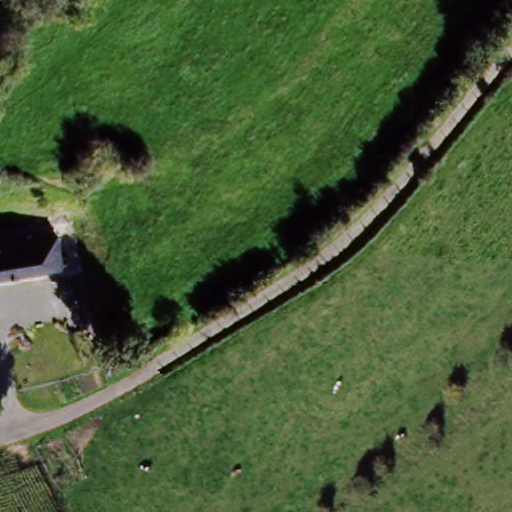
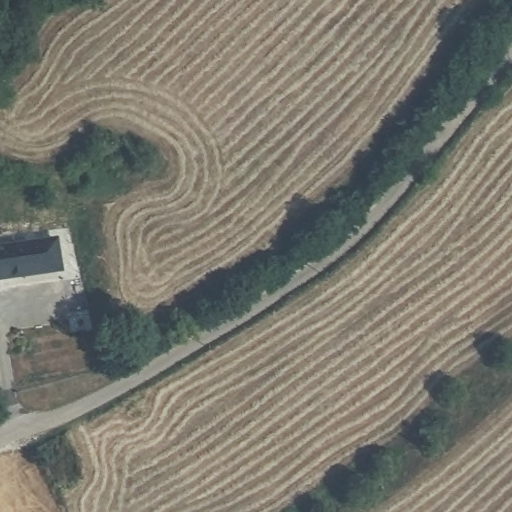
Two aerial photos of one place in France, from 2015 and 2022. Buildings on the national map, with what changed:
unchanged [(60,270),(0,278),(0,247),(56,240),(60,270)]

